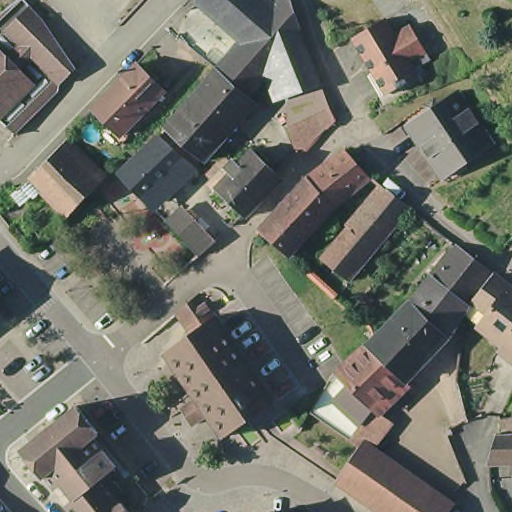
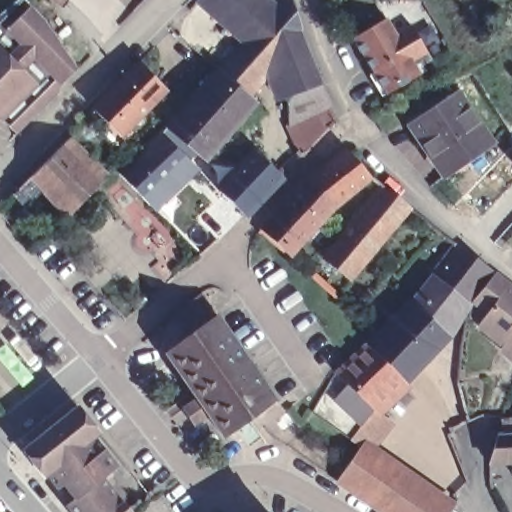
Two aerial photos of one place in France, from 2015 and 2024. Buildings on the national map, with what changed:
unchanged [(28,6),(43,23),(45,26),(76,71),(68,80),(65,82),(59,89),(59,95),(45,109),(39,115),(23,131),(20,134),(19,135),(15,138),(0,122),(0,18),(21,0),(28,6)]
unchanged [(239,40),(223,25),(194,0),(195,0),(270,0),(271,1),(251,25),(239,40)]
unchanged [(286,95),(273,61),(246,92),(216,67),(237,43),(239,40),(251,25),(271,1),(273,0),(291,0),(300,29),(321,82),(286,95)]
unchanged [(348,34),(382,15),(391,29),(407,20),(428,55),(417,61),(415,58),(411,61),(416,69),(381,89),(348,34)]
unchanged [(164,90),(121,135),(116,130),(109,123),(111,120),(97,106),(96,105),(108,92),(108,90),(136,62),(164,90)]
unchanged [(206,159),(206,160),(191,149),(166,126),(203,84),(216,67),(246,92),(256,101),(206,159)]
unchanged [(334,112),(337,120),(301,157),(296,153),(297,150),(287,124),(286,95),(321,82),(334,112)]
unchanged [(404,125),(453,93),(488,145),(439,177),(404,125)]
unchanged [(163,129),(187,150),(182,155),(190,162),(149,203),(123,176),(118,172),(158,134),(163,129)]
unchanged [(22,189),(33,178),(34,177),(73,137),(111,175),(71,216),(43,188),(22,208),(18,204),(28,195),(22,189)]
unchanged [(349,144),(374,172),(340,201),(332,209),(294,250),(286,242),(264,223),(311,172),(349,144)]
unchanged [(246,155),(253,149),(263,159),(279,175),(282,178),(246,216),(243,214),(216,187),(246,155)]
unchanged [(398,189),(341,290),(335,284),(315,266),(386,179),(398,189)]
unchanged [(194,249),(168,221),(183,205),(189,212),(218,240),(200,255),(194,249)]
unchanged [(415,296),(434,278),(431,275),(456,244),(493,272),(469,305),(466,304),(449,335),(415,296)]
unchanged [(506,347),(478,325),(468,317),(469,315),(471,305),(474,300),(494,275),(512,289),(512,352),(506,347)]
unchanged [(187,402),(176,410),(171,403),(197,385),(170,346),(196,327),(181,306),(204,286),(221,310),(279,395),(228,431),(213,408),(198,419),(187,402)]
unchanged [(449,335),(427,359),(405,381),(404,380),(366,343),(376,333),(415,296),(449,335)]
unchanged [(366,343),(404,380),(373,408),(334,372),(366,343)]
unchanged [(373,408),(391,421),(368,451),(367,451),(360,447),(311,411),(333,375),(334,372),(373,408)]
unchanged [(65,505),(73,498),(61,485),(56,488),(45,475),(43,477),(20,450),(77,405),(96,429),(99,432),(93,437),(115,466),(102,477),(128,509),(130,512),(71,512),(65,505)]
unchanged [(488,462),(496,434),(497,432),(502,431),(500,423),(512,421),(512,460),(488,462)]
unchanged [(367,451),(409,483),(387,512),(383,512),(337,480),(360,447),(367,451)]
unchanged [(502,465),(503,486),(503,487),(489,488),(488,487),(488,480),(487,478),(487,466),(502,465)]
unchanged [(409,483),(449,512),(387,512),(409,483)]

